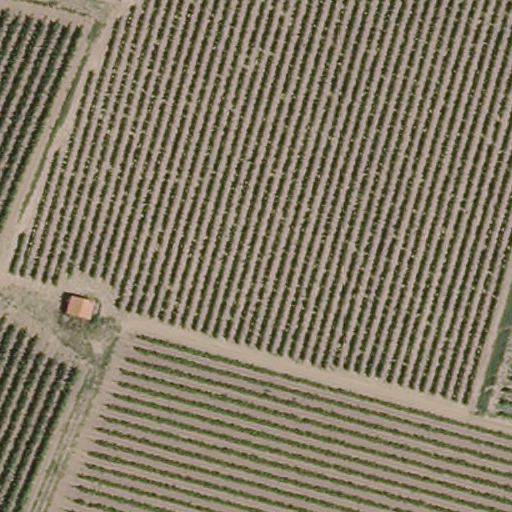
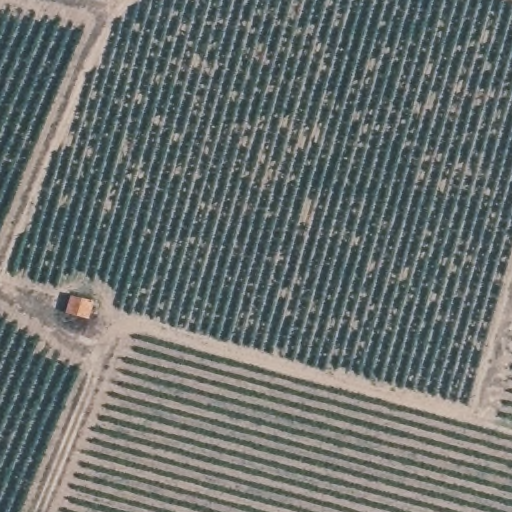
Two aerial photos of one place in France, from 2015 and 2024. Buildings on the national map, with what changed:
unchanged [(75,291),(96,298),(92,312),(70,305),(75,291)]

